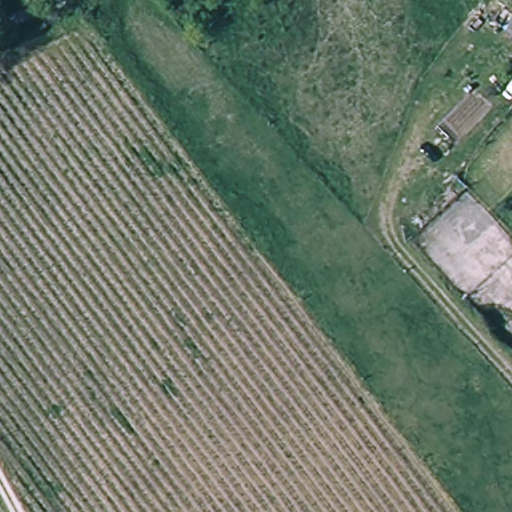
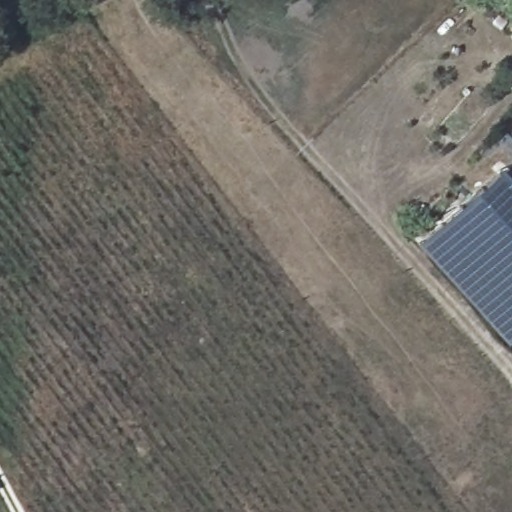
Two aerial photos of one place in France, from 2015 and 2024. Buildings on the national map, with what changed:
new [(512,339),(507,344),(417,243),(501,167),(512,179),(512,339)]

